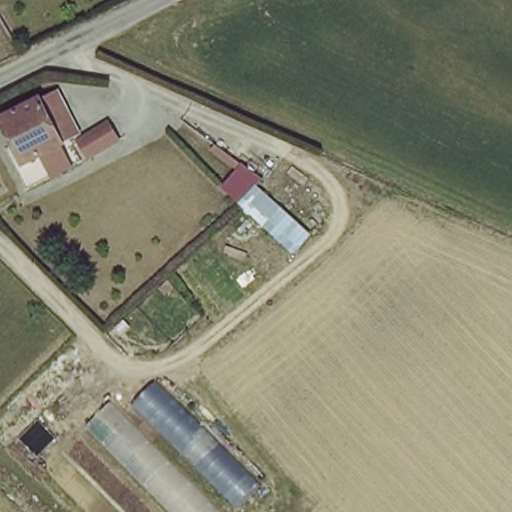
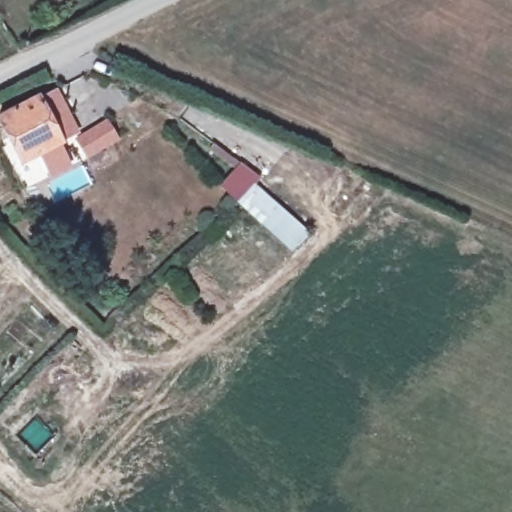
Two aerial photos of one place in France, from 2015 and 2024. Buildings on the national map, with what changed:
unchanged [(45,169),(35,148),(15,157),(0,124),(0,109),(52,84),(73,130),(53,139),(63,161),(45,169)]
unchanged [(111,135),(83,152),(73,134),(101,118),(111,135)]
unchanged [(233,204),(214,184),(226,170),(203,145),(210,139),(253,184),(233,204)]
unchanged [(312,235),(292,256),(233,204),(253,184),(312,235)]
demolished [(249,481),(223,509),(226,512),(169,512),(82,423),(107,396),(120,410),(148,381),(249,481)]

